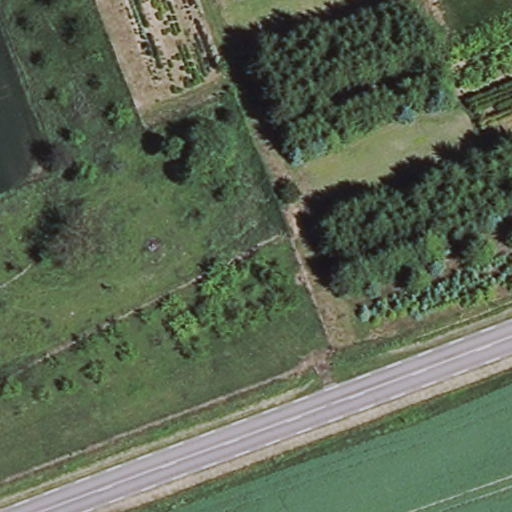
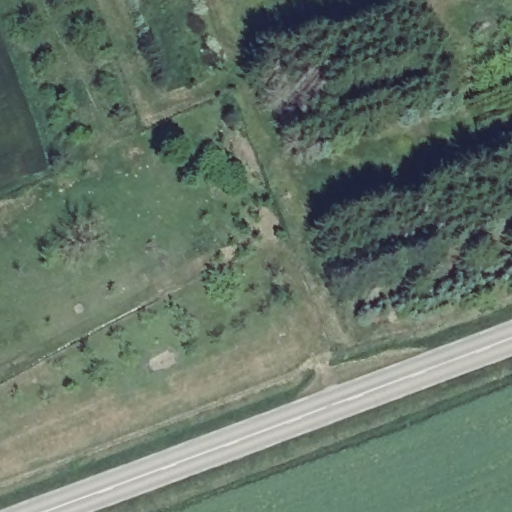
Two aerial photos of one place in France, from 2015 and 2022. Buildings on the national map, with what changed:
[]

